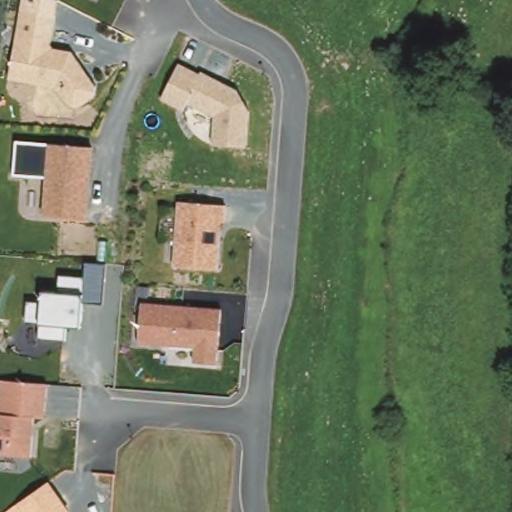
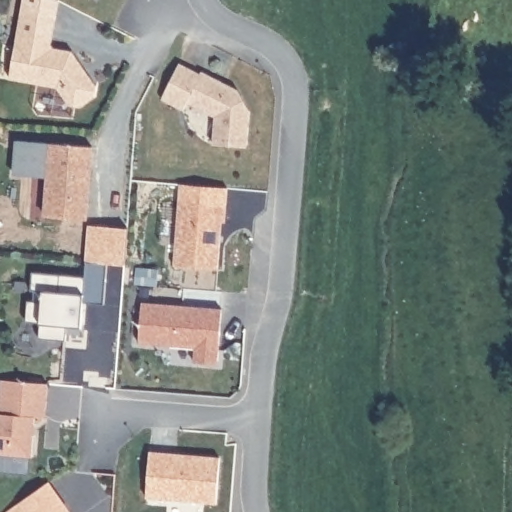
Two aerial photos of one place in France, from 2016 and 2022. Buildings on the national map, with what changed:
unchanged [(56,15),(51,44),(54,49),(73,53),(97,87),(95,98),(81,107),(74,107),(55,88),(6,79),(18,10),(56,15)]
unchanged [(201,73),(203,71),(239,90),(250,113),(248,148),(211,143),(213,118),(187,104),(184,111),(161,100),(179,63),(201,73)]
unchanged [(14,175),(17,141),(95,147),(89,219),(44,216),(46,177),(14,175)]
unchanged [(227,208),(227,224),(222,224),(219,270),(173,266),(177,201),(227,208)]
unchanged [(43,303),(44,291),(59,292),(61,276),(86,277),(87,264),(108,266),(105,305),(83,303),(81,327),(67,326),(65,341),(36,339),(38,322),(26,321),(28,302),(43,303)]
unchanged [(219,365),(191,363),(192,348),(138,344),(141,301),(222,307),(219,365)]
unchanged [(32,457),(0,454),(0,381),(47,384),(45,419),(35,417),(32,457)]
new [(146,497),(149,451),(219,456),(216,502),(146,497)]
unchanged [(23,512),(17,504),(49,480),(71,512),(23,512)]

